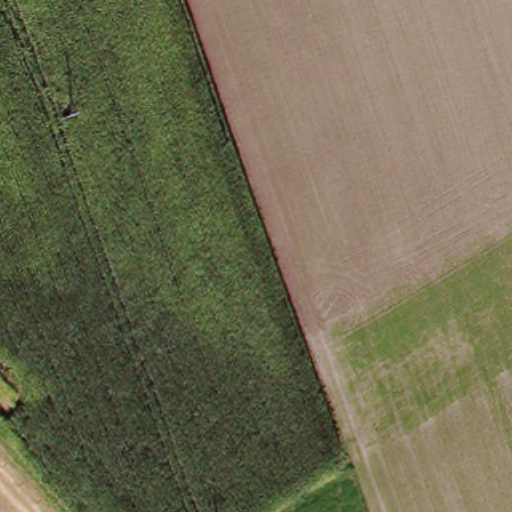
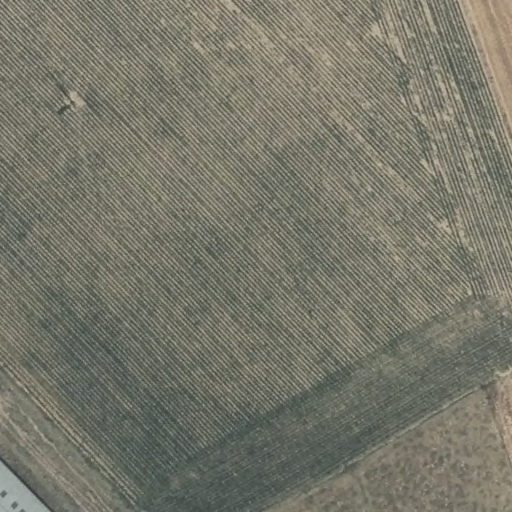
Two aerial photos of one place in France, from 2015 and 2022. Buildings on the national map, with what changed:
new [(53,512),(0,512),(0,457),(53,512)]

